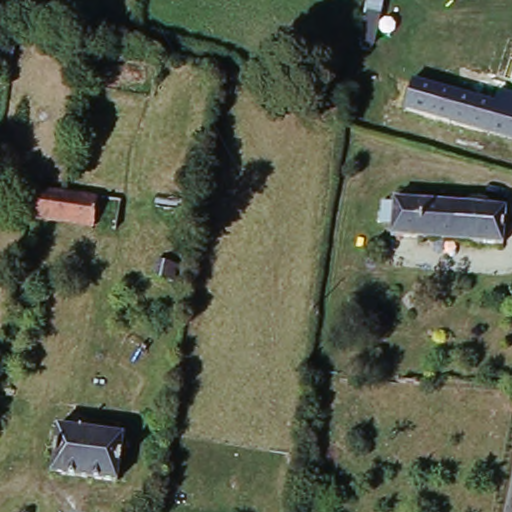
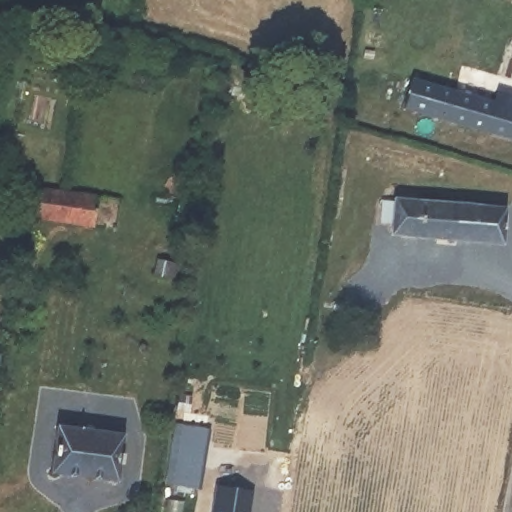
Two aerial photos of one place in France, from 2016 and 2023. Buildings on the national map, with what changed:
unchanged [(407,115),(416,86),(495,109),(500,95),(512,99),(512,146),(407,115)]
unchanged [(93,229),(21,220),(26,193),(64,198),(96,202),(118,205),(115,232),(93,229)]
unchanged [(414,194),(413,199),(506,207),(503,244),(391,234),(395,193),(414,194)]
unchanged [(170,279),(156,277),(159,261),(172,263),(170,279)]
unchanged [(0,339),(0,333),(1,333),(0,339)]
new [(209,427),(201,487),(166,481),(174,422),(209,427)]
unchanged [(117,481),(52,472),(59,425),(123,434),(117,481)]
unchanged [(334,487),(310,483),(314,456),(338,460),(335,477),(334,487)]
unchanged [(254,491),(251,512),(211,512),(214,483),(254,491)]

